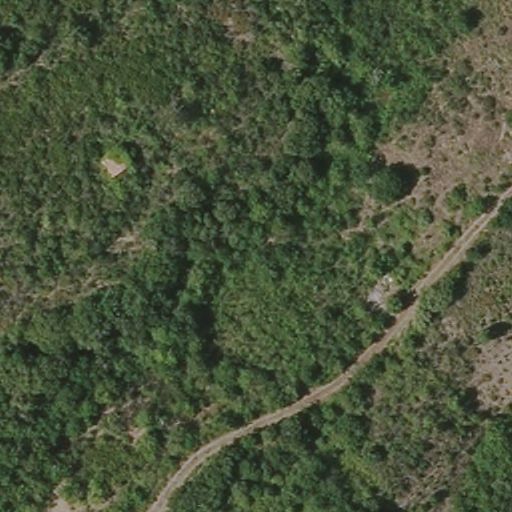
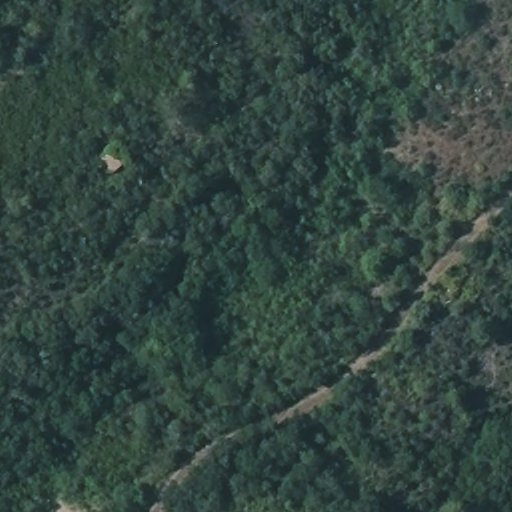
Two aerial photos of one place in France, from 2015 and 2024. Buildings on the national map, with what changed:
unchanged [(127,164),(112,176),(100,163),(116,150),(127,164)]

